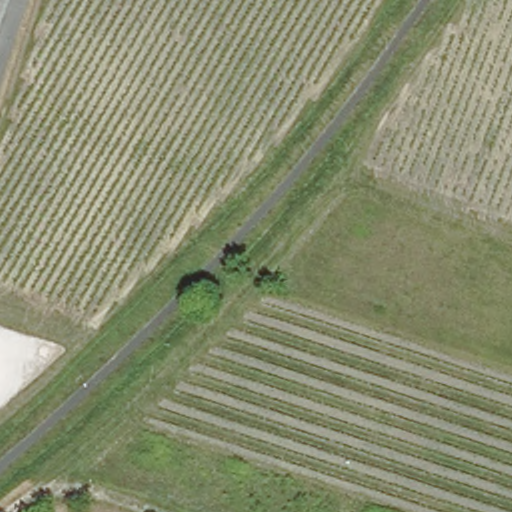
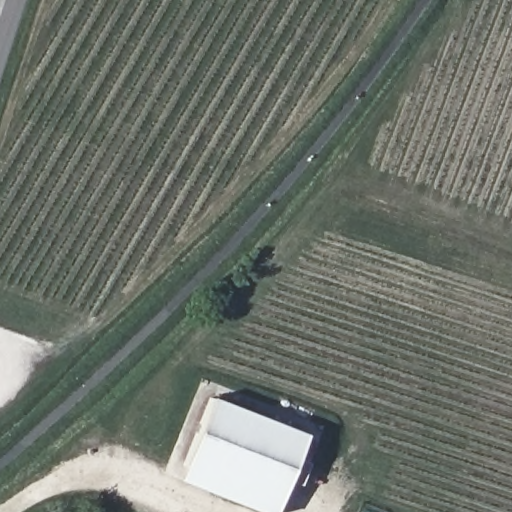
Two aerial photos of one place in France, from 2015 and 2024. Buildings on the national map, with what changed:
new [(300,484),(288,479),(275,512),(265,512),(181,478),(212,397),(306,433),(298,456),(309,461),(300,484)]

